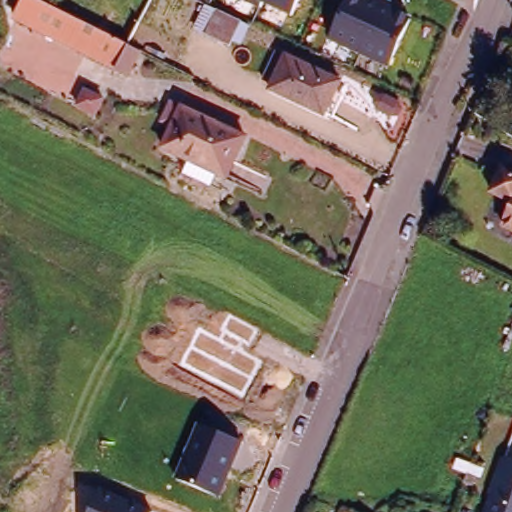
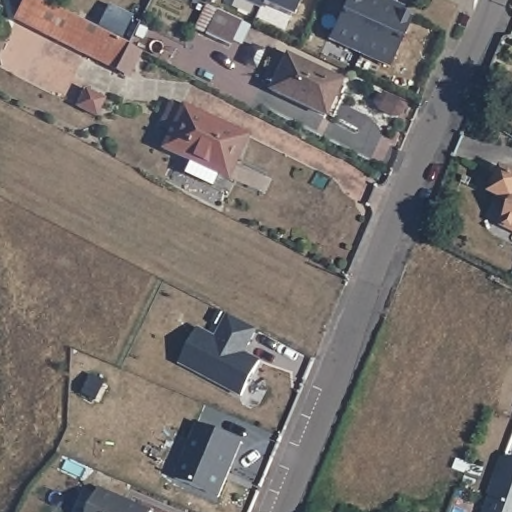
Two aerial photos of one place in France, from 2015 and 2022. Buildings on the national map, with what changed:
unchanged [(116,69),(7,15),(15,0),(37,0),(122,41),(127,44),(141,51),(130,76),(116,69)]
unchanged [(263,4),(261,10),(238,0),(302,0),(294,18),(263,4)]
unchanged [(375,0),(413,16),(390,68),(329,40),(347,0),(375,0)]
unchanged [(236,44),(211,32),(222,8),(247,20),(236,44)]
unchanged [(272,90),(275,83),(264,79),(277,51),(342,81),(327,115),(272,90)]
unchanged [(215,174),(210,184),(186,174),(191,164),(159,149),(170,124),(158,119),(166,102),(243,136),(224,179),(215,174)]
unchanged [(506,171),(512,174),(512,203),(495,194),(506,171)]
unchanged [(508,228),(512,219),(512,229),(508,228)]
new [(242,398),(180,366),(200,328),(217,337),(229,314),(258,330),(247,354),(262,362),(242,398)]
unchanged [(198,424),(244,443),(220,499),(174,478),(198,424)]
unchanged [(490,493),(502,459),(512,463),(512,512),(485,512),(492,494),(490,493)]
unchanged [(152,512),(91,512),(101,490),(153,512),(152,512)]

